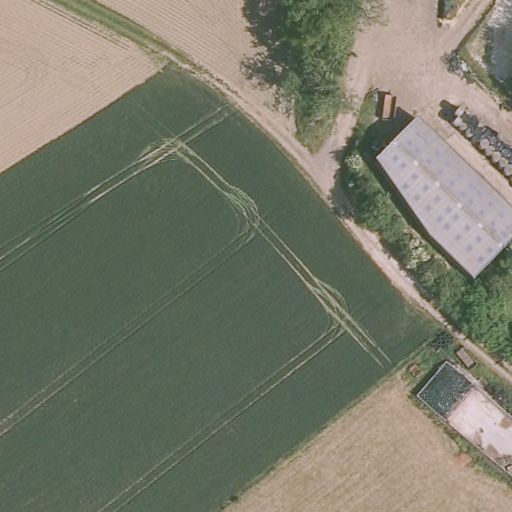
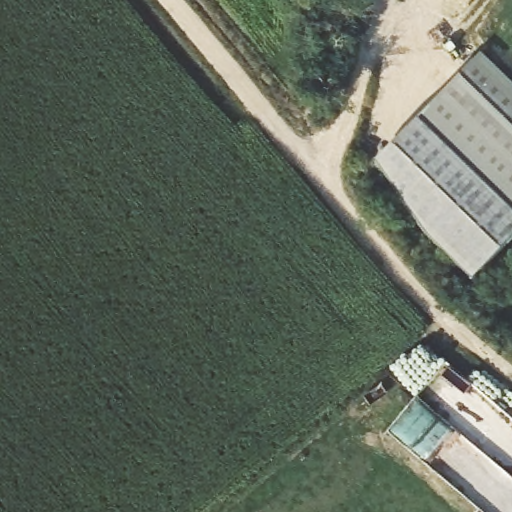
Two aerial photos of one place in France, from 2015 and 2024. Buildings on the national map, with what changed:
new [(416,120),(479,55),(512,86),(512,213),(416,120)]
unchanged [(512,213),(512,240),(472,282),(426,234),(376,162),(416,120),(512,213)]

